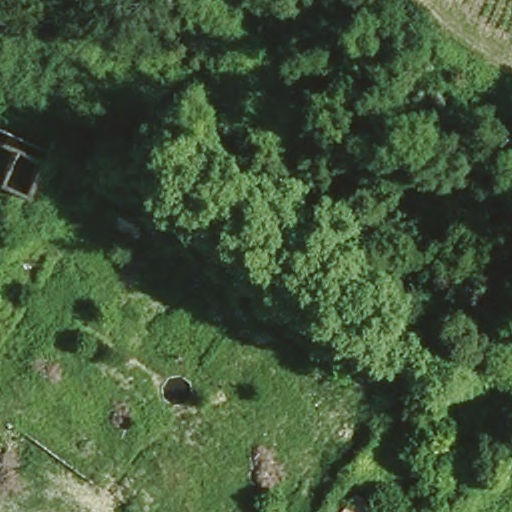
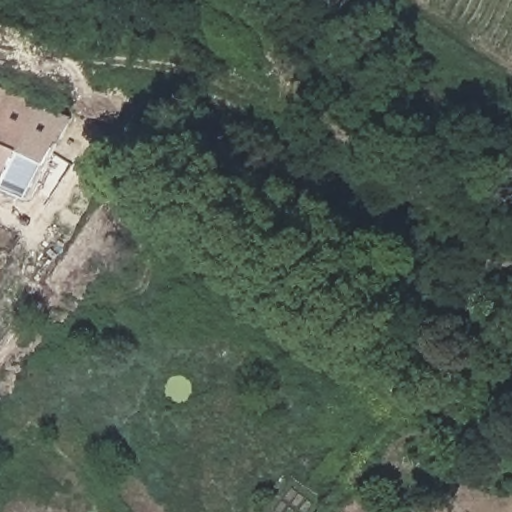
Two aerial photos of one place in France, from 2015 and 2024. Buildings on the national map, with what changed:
new [(0,185),(0,88),(65,118),(29,198),(0,185)]

